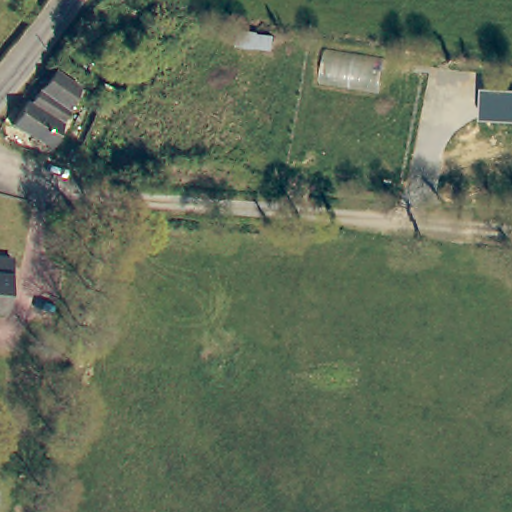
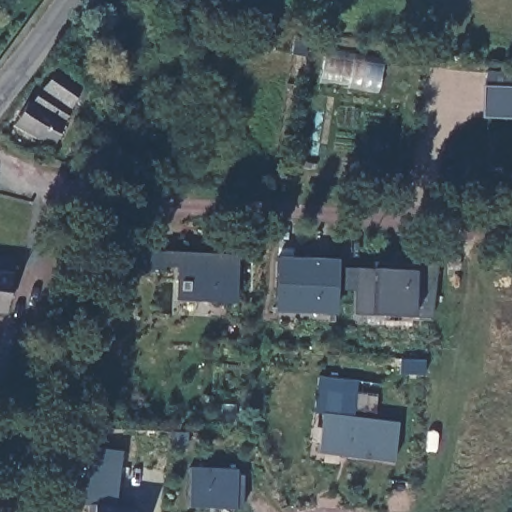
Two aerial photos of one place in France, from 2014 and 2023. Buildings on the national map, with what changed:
unchanged [(274,39),(271,51),(240,43),(242,31),(274,39)]
unchanged [(34,107),(54,72),(82,89),(62,124),(65,126),(51,148),(12,127),(29,104),(34,107)]
unchanged [(512,88),(512,118),(481,117),(482,86),(512,88)]
unchanged [(236,302),(172,300),(175,267),(161,266),(163,251),(238,254),(236,302)]
new [(336,315),(275,312),(278,257),(338,259),(336,315)]
unchanged [(11,260),(5,316),(0,315),(0,258),(11,260)]
new [(434,317),(412,319),(368,317),(351,315),(353,268),(371,268),(371,261),(435,264),(434,317)]
new [(352,417),(398,423),(394,463),(316,454),(321,415),(310,414),(315,376),(359,381),(352,417)]
new [(90,512),(90,507),(85,506),(90,459),(120,463),(115,507),(141,510),(141,512),(90,512)]
new [(236,477),(244,477),(241,511),(188,509),(190,467),(237,469),(236,477)]

